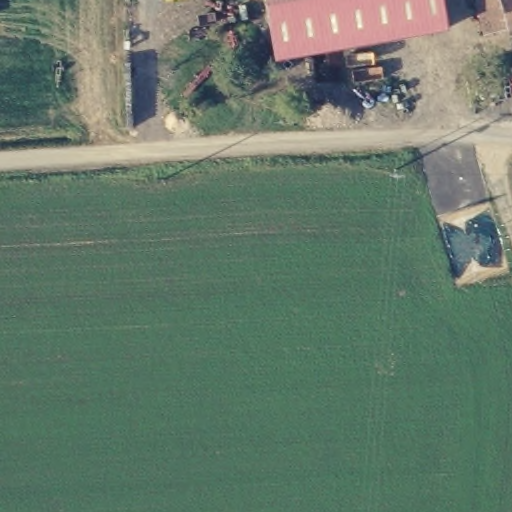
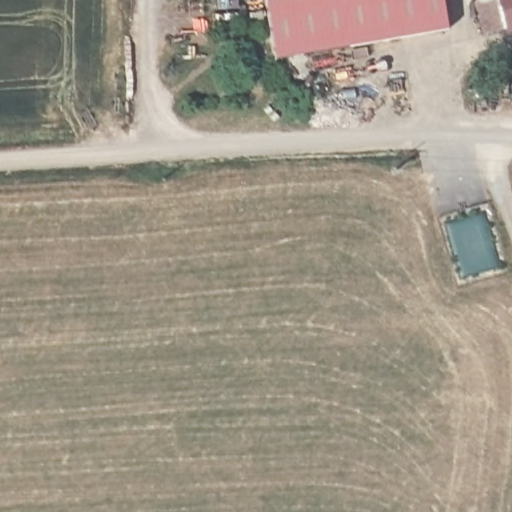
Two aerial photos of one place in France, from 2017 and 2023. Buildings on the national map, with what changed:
unchanged [(444,0),(449,27),(276,57),(265,0),(444,0)]
unchanged [(485,34),(478,0),(512,0),(512,29),(485,34)]

